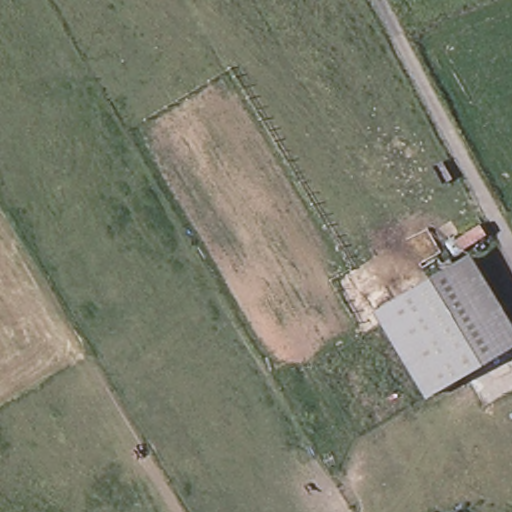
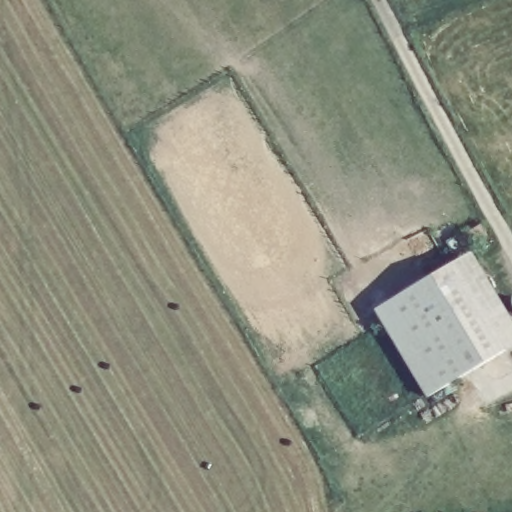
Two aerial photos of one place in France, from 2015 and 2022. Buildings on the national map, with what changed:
unchanged [(463,253),(454,239),(476,224),(496,258),(481,267),(512,323),(512,340),(505,344),(453,258),(463,253)]
unchanged [(453,258),(505,344),(427,391),(375,305),(453,258)]

